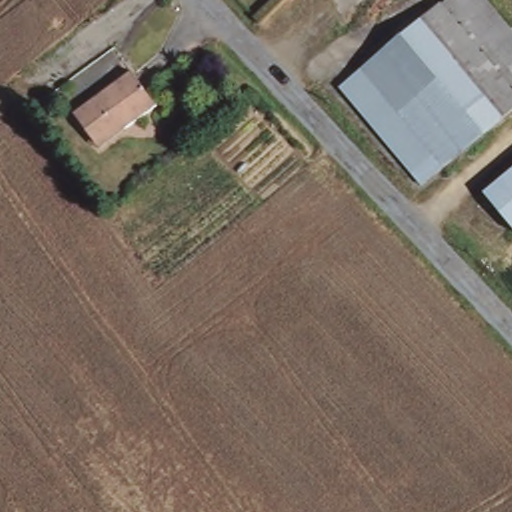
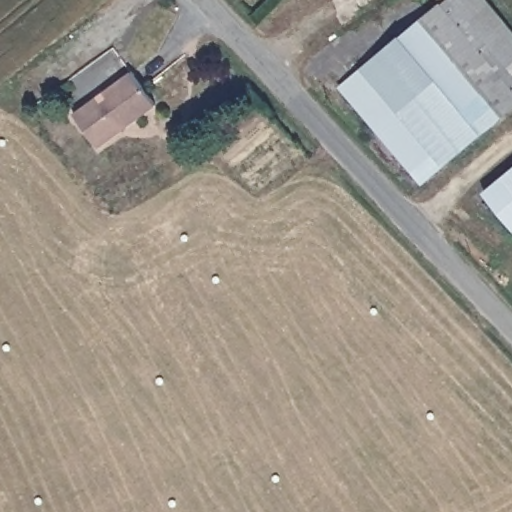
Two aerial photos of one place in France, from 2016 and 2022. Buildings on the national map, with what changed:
unchanged [(490,0),(512,26),(512,113),(504,120),(424,25),(454,0),(490,0)]
unchanged [(426,185),(347,90),(424,25),(504,120),(426,185)]
unchanged [(99,140),(79,112),(135,71),(161,105),(131,129),(105,147),(99,140)]
unchanged [(512,178),(512,222),(490,196),(512,178)]

